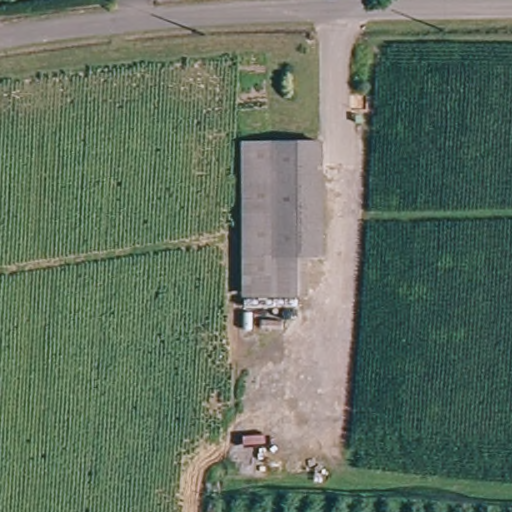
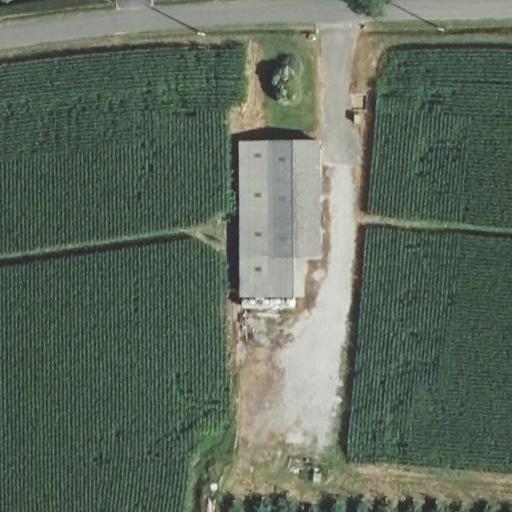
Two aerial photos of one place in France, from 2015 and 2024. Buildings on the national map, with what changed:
unchanged [(244,145),(321,137),(331,250),(308,252),(254,257),(244,145)]
unchanged [(308,252),(311,289),(256,294),(254,257),(308,252)]

